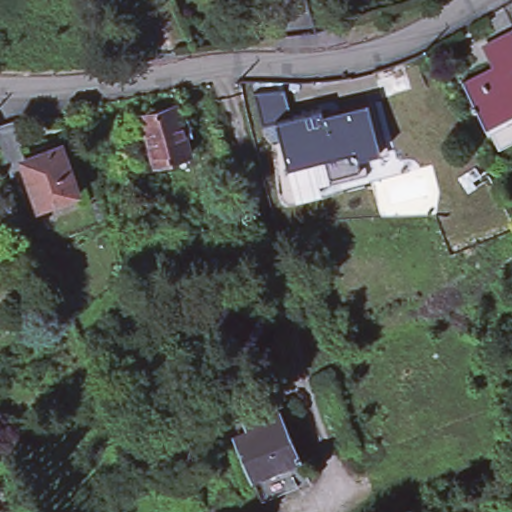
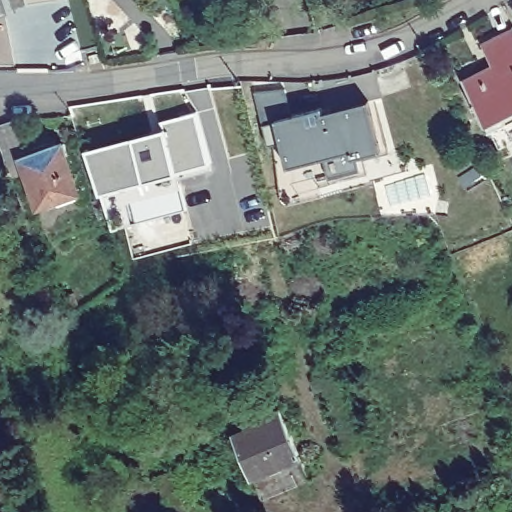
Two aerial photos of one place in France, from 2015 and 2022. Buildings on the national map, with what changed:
unchanged [(504,35),(512,31),(512,54),(504,35)]
unchanged [(97,53),(99,59),(91,61),(90,55),(97,53)]
unchanged [(492,124),(490,125),(482,107),(477,109),(474,104),(479,102),(468,79),(500,64),(501,66),(512,60),(512,143),(502,148),(492,124)]
unchanged [(258,124),(250,92),(279,88),(286,115),(317,107),(317,112),(363,100),(376,148),(354,155),(356,167),(326,174),(320,155),(284,164),(272,120),(258,124)]
demolished [(140,131),(152,127),(149,117),(180,107),(183,117),(191,115),(197,136),(189,139),(194,155),(162,165),(158,151),(147,154),(140,131)]
new [(211,162),(178,172),(188,209),(112,228),(101,191),(86,148),(133,135),(134,135),(166,127),(163,118),(197,110),(211,162)]
unchanged [(66,146),(69,156),(66,158),(79,193),(40,209),(26,174),(12,178),(0,143),(0,128),(12,123),(23,152),(47,144),(49,151),(66,146)]
unchanged [(65,295),(74,292),(77,302),(68,305),(65,295)]
unchanged [(252,474),(230,423),(231,422),(217,389),(235,382),(248,414),(259,410),(261,415),(280,407),(301,454),(306,466),(295,471),(299,482),(286,488),(262,498),(252,474)]

